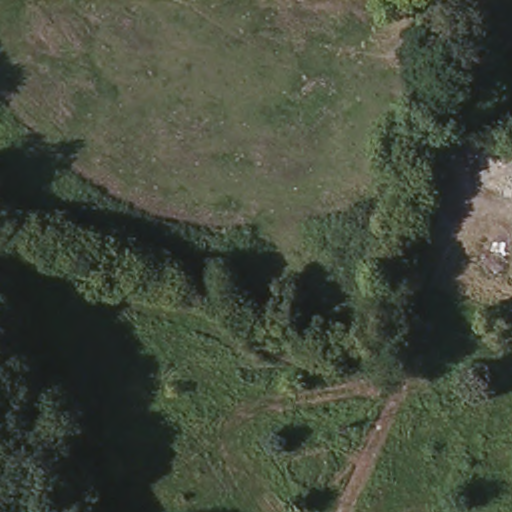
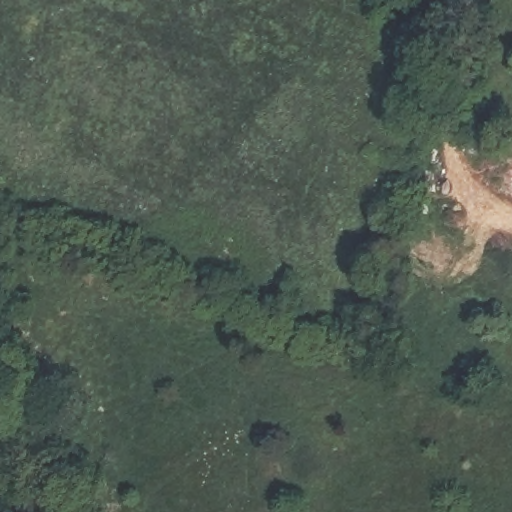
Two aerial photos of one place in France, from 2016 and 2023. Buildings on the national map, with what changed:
unchanged [(508,169),(512,159),(512,170),(508,169)]

